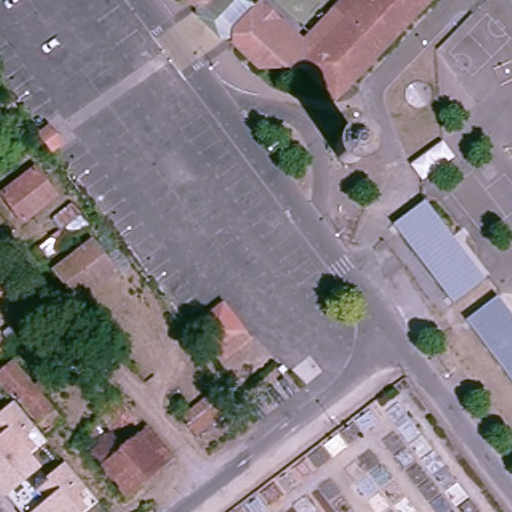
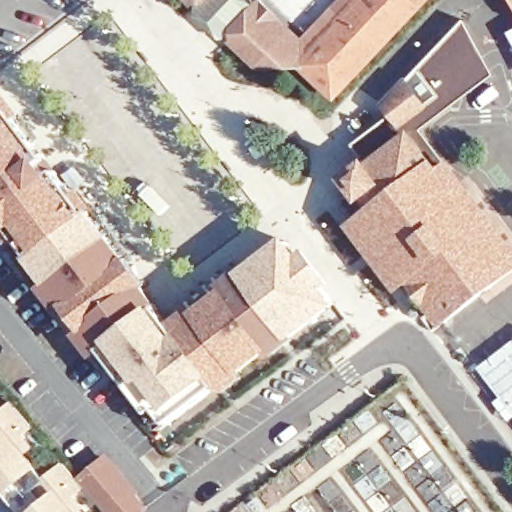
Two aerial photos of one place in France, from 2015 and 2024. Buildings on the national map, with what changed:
new [(240,25),(222,43),(194,14),(208,0),(250,0),(257,6),(240,25)]
unchanged [(240,41),(240,25),(262,0),(265,0),(307,38),(344,0),(362,0),(308,57),(288,38),(265,63),(240,41)]
unchanged [(308,57),(362,0),(428,0),(340,93),(307,62),(265,63),(288,38),(308,57)]
demolished [(512,82),(510,84),(473,36),(505,12),(512,22),(512,82)]
new [(425,130),(452,159),(512,239),(512,276),(443,329),(412,283),(398,293),(347,226),(367,211),(342,179),(367,160),(355,145),(391,117),(382,105),(466,21),(496,74),(425,130)]
new [(25,114),(17,118),(46,157),(42,159),(52,173),(57,171),(72,191),(82,186),(96,206),(92,209),(150,288),(169,322),(237,272),(239,274),(287,237),(301,253),(307,247),(332,280),(325,286),(340,306),(272,358),(269,355),(245,374),(247,377),(224,394),(219,387),(167,423),(160,428),(150,411),(106,353),(96,360),(77,335),(82,330),(68,312),(62,317),(40,287),(46,282),(27,257),(31,254),(18,239),(11,243),(0,226),(0,79),(25,114)]
demolished [(405,83),(418,100),(392,123),(377,104),(405,83)]
demolished [(48,131),(53,134),(60,142),(61,148),(54,153),(42,137),(48,131)]
demolished [(512,154),(502,141),(512,134),(512,154)]
demolished [(442,141),(455,156),(423,181),(411,166),(442,141)]
demolished [(30,217),(8,190),(41,165),(62,192),(30,217)]
demolished [(417,199),(476,279),(445,302),(435,289),(398,240),(385,222),(417,199)]
demolished [(82,295),(60,267),(94,239),(117,267),(82,295)]
demolished [(3,285),(0,287),(0,281),(3,285)]
demolished [(512,320),(512,386),(461,318),(493,295),(512,320)]
demolished [(229,303),(250,331),(225,349),(204,321),(229,303)]
new [(512,420),(508,422),(492,402),(498,396),(476,367),(512,340),(512,420)]
demolished [(51,406),(35,420),(0,379),(0,370),(12,359),(51,406)]
demolished [(227,408),(190,439),(172,418),(210,386),(227,408)]
unchanged [(0,482),(0,413),(15,400),(33,423),(22,432),(32,444),(24,451),(47,477),(66,461),(84,483),(72,493),(83,505),(75,512),(23,512),(6,490),(0,482)]
demolished [(141,433),(147,429),(171,459),(126,498),(101,468),(141,433)]
new [(141,490),(137,493),(147,508),(143,512),(110,512),(87,482),(84,483),(78,476),(109,450),(141,490)]

